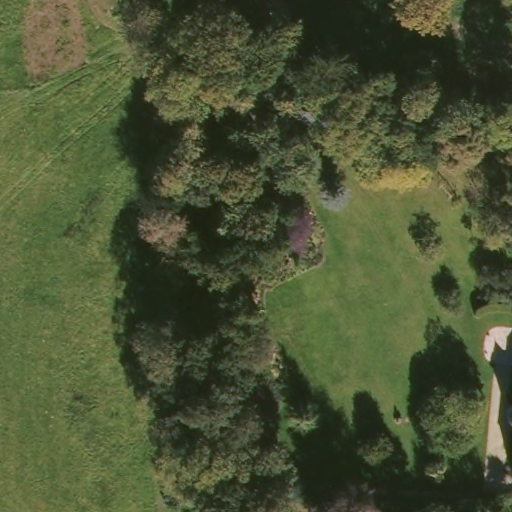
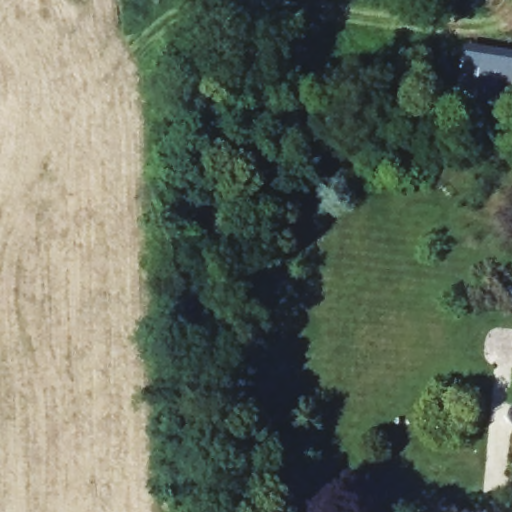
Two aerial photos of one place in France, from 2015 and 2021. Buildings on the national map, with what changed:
new [(512,46),(512,94),(468,90),(472,50),(472,42),(512,46)]
unchanged [(511,407),(510,405),(510,402),(510,400),(511,398),(512,397),(512,409),(511,407)]

